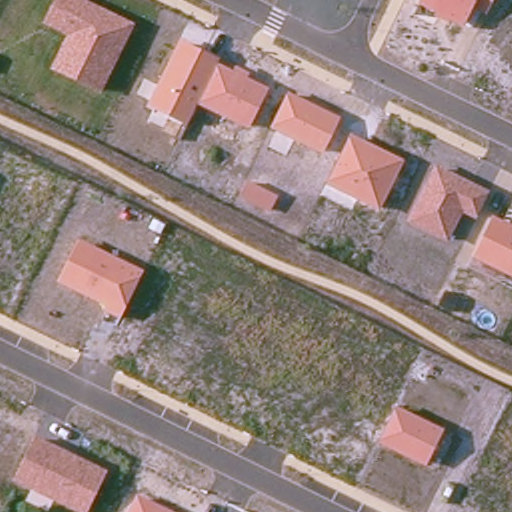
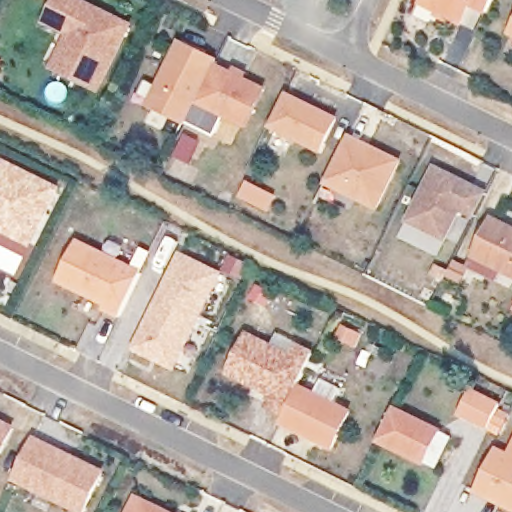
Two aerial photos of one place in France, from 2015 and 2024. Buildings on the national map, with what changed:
unchanged [(66,32),(43,22),(53,0),(94,0),(135,20),(104,90),(51,67),(66,32)]
unchanged [(423,0),(494,0),(486,16),(473,10),(464,27),(420,6),(423,0)]
unchanged [(149,102),(180,36),(220,55),(219,59),(270,85),(250,127),(196,101),(188,121),(149,102)]
unchanged [(271,126),(288,90),(342,116),(325,152),(271,126)]
unchanged [(327,182),(350,132),(405,158),(381,209),(327,182)]
new [(0,232),(0,170),(5,160),(61,189),(34,248),(0,232)]
unchanged [(407,221),(435,162),(491,190),(477,218),(463,211),(448,241),(407,221)]
unchanged [(473,256),(493,215),(512,224),(512,274),(473,256)]
unchanged [(120,322),(100,311),(101,306),(56,282),(77,239),(144,271),(120,322)]
new [(134,352),(182,254),(225,275),(176,372),(134,352)]
new [(285,408),(270,401),(275,390),(230,368),(248,330),(293,352),(299,341),(315,348),(299,381),(351,407),(334,442),(281,417),(290,397),(285,408)]
unchanged [(473,386),(500,399),(490,422),(462,408),(473,386)]
unchanged [(378,442),(395,407),(443,428),(426,467),(378,442)]
new [(5,455),(0,463),(0,421),(16,430),(5,455)]
unchanged [(12,481),(35,436),(107,471),(88,512),(75,512),(12,481)]
new [(502,500),(493,496),(476,487),(497,444),(510,450),(512,445),(512,504),(502,500)]
unchanged [(135,496),(170,512),(128,512),(135,496)]

